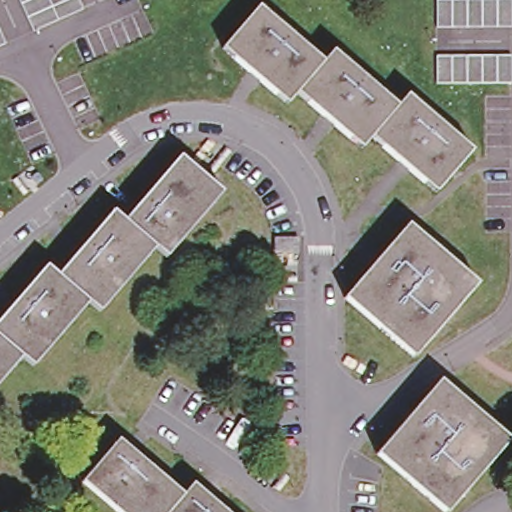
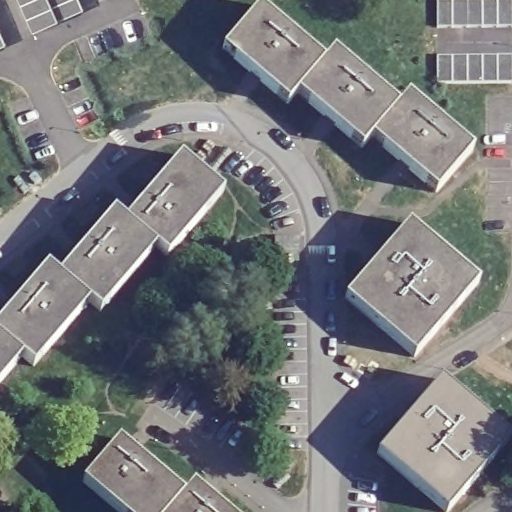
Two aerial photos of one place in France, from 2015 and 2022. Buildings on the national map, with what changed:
unchanged [(82,5),(57,15),(33,26),(27,13),(21,0),(80,0),(82,5)]
unchanged [(495,30),(480,30),(465,30),(450,30),(435,30),(435,2),(435,0),(510,0),(510,1),(510,30),(495,30)]
unchanged [(257,1),(320,57),(331,45),(395,101),(407,88),(470,145),(435,185),(371,129),(360,142),(295,86),(285,97),(222,40),(257,1)]
unchanged [(0,41),(0,25),(6,38),(0,41)]
unchanged [(465,59),(480,58),(495,58),(510,58),(510,85),(495,85),(480,86),(465,86),(450,86),(435,86),(435,59),(450,59),(465,59)]
unchanged [(53,272),(109,207),(120,217),(175,154),(219,191),(163,255),(152,246),(97,310),(85,300),(30,363),(18,353),(0,375),(0,312),(42,263),(53,272)]
unchanged [(477,275),(413,350),(343,290),(407,215),(477,275)]
unchanged [(297,240),(297,255),(274,255),(275,240),(297,240)]
unchanged [(510,433),(445,506),(376,446),(440,371),(510,433)]
unchanged [(180,490),(190,478),(229,512),(119,512),(81,478),(117,436),(180,490)]

